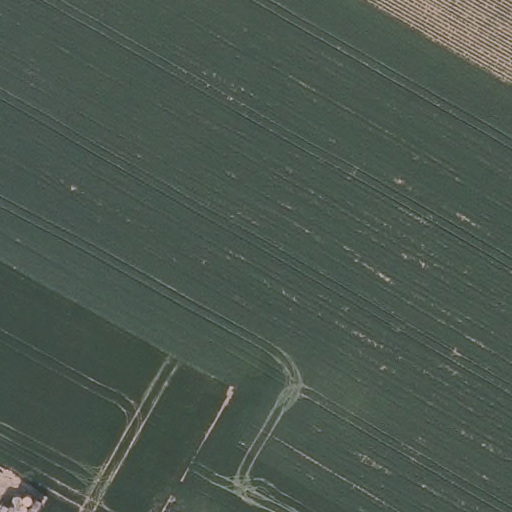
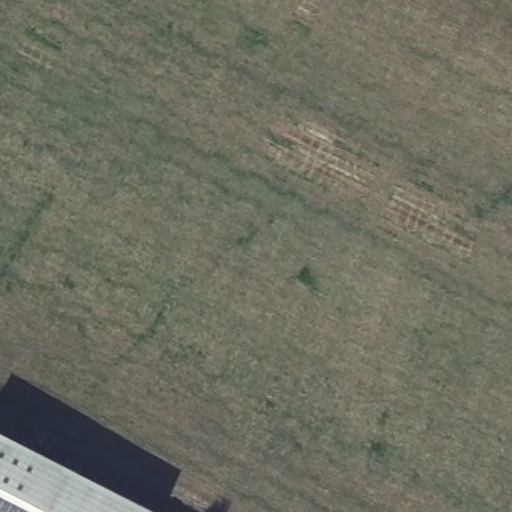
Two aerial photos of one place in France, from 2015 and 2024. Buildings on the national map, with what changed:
new [(0,512),(0,434),(155,512),(0,512)]

